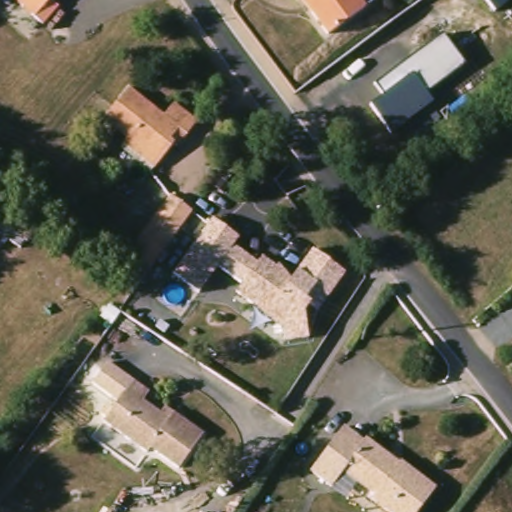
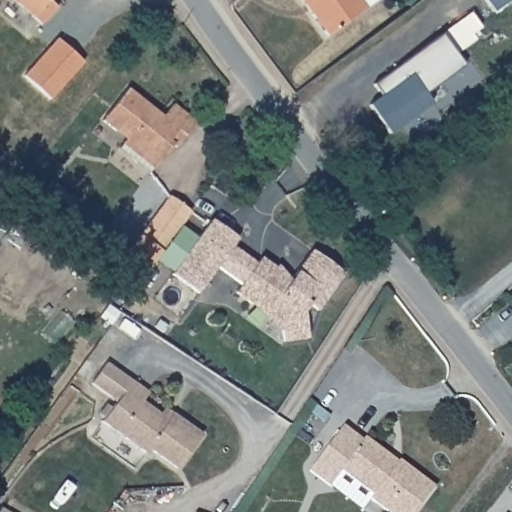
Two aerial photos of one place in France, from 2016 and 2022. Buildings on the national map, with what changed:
unchanged [(54,0),(61,7),(46,25),(19,0),(54,0)]
unchanged [(323,35),(307,12),(298,0),(371,0),(360,7),(323,35)]
unchanged [(512,0),(512,4),(495,15),(485,0),(512,0)]
unchanged [(369,104),(383,92),(375,83),(445,33),(463,65),(425,92),(431,103),(390,134),(369,104)]
new [(67,35),(93,59),(59,95),(33,72),(67,35)]
unchanged [(127,136),(104,117),(107,114),(129,86),(164,115),(174,102),(197,121),(186,135),(185,134),(176,145),(174,142),(159,161),(151,170),(120,145),(127,136)]
unchanged [(82,196),(71,210),(50,195),(61,180),(82,196)]
unchanged [(202,200),(172,240),(160,256),(139,240),(150,225),(180,184),(202,200)]
unchanged [(284,341),(281,327),(235,293),(242,283),(216,265),(197,291),(172,275),(215,218),(239,235),(232,245),(256,263),(262,258),(277,269),(280,266),(292,275),(312,249),(345,271),(320,309),(310,302),(304,312),(307,338),(284,341)]
unchanged [(91,383),(104,365),(131,383),(118,402),(91,383)]
unchanged [(177,472),(149,451),(145,456),(102,425),(105,420),(100,417),(106,407),(111,411),(131,383),(148,395),(141,404),(159,417),(164,410),(171,416),(201,437),(177,472)]
unchanged [(372,499),(341,475),(329,490),(309,474),(323,456),(342,430),(362,445),(365,442),(382,455),(397,467),(398,465),(433,491),(418,512),(381,512),(370,503),(372,499)]

